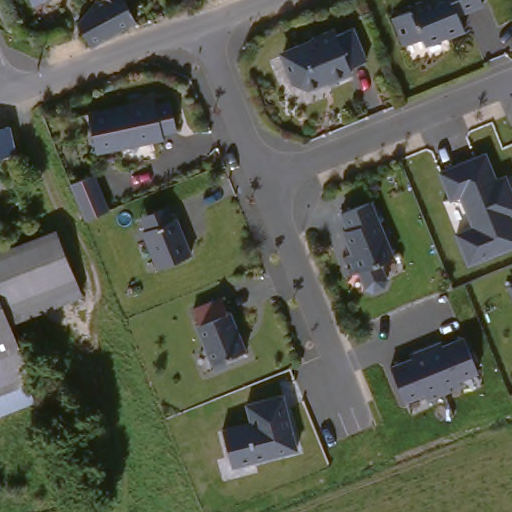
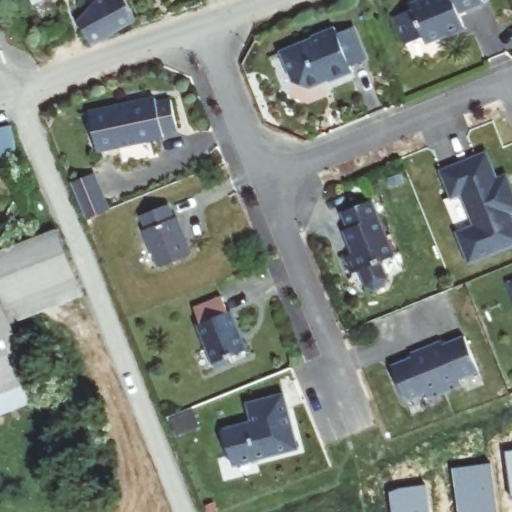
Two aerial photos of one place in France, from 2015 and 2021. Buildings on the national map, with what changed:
unchanged [(32,0),(48,0),(34,6),(32,0)]
unchanged [(71,29),(92,8),(89,0),(118,0),(111,5),(123,34),(82,53),(71,29)]
unchanged [(417,0),(478,0),(479,5),(454,14),(459,30),(441,37),(441,35),(419,41),(417,37),(399,42),(389,14),(407,8),(406,4),(417,0)]
unchanged [(302,46),(300,41),(324,32),(326,38),(344,32),(356,65),(338,71),(340,77),(316,86),(315,82),(293,89),(283,86),(271,57),(302,46)]
unchanged [(158,101),(159,106),(173,103),(179,132),(164,136),(165,141),(98,152),(91,113),(158,101)]
unchanged [(0,130),(9,160),(0,161),(0,130)]
unchanged [(483,160),(498,198),(508,195),(512,206),(512,219),(506,221),(512,236),(512,251),(464,270),(453,239),(470,232),(458,201),(448,204),(438,177),(483,160)]
unchanged [(91,175),(104,211),(81,220),(68,183),(91,175)]
unchanged [(140,214),(168,203),(173,217),(175,217),(189,254),(157,266),(143,228),(145,227),(140,214)]
unchanged [(397,260),(383,266),(389,283),(386,291),(376,295),(368,291),(361,275),(353,277),(346,260),(355,257),(347,234),(351,232),(345,216),(376,204),(397,260)]
unchanged [(54,240),(78,300),(60,307),(36,247),(54,240)]
unchanged [(4,327),(0,315),(0,259),(36,247),(60,307),(4,327)]
unchanged [(504,282),(512,279),(512,304),(504,282)]
unchanged [(218,296),(223,311),(226,310),(240,350),(223,356),(225,362),(208,367),(192,322),(195,321),(189,306),(218,296)]
unchanged [(28,386),(22,388),(28,406),(0,417),(0,315),(4,327),(28,386)]
unchanged [(412,357),(410,353),(441,342),(443,346),(464,337),(479,372),(458,380),(460,387),(426,400),(423,393),(404,401),(390,366),(412,357)]
unchanged [(300,451),(235,467),(225,431),(254,423),(249,405),(286,396),(300,451)]
new [(512,449),(512,497),(510,497),(505,450),(512,449)]
new [(491,462),(497,512),(459,512),(454,466),(491,462)]
new [(400,485),(425,482),(429,512),(392,512),(389,488),(400,485)]

